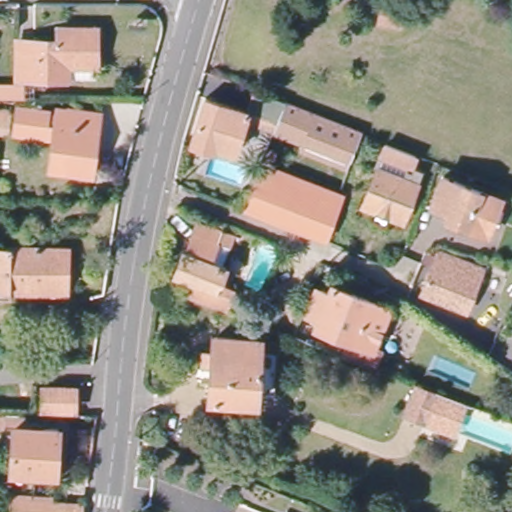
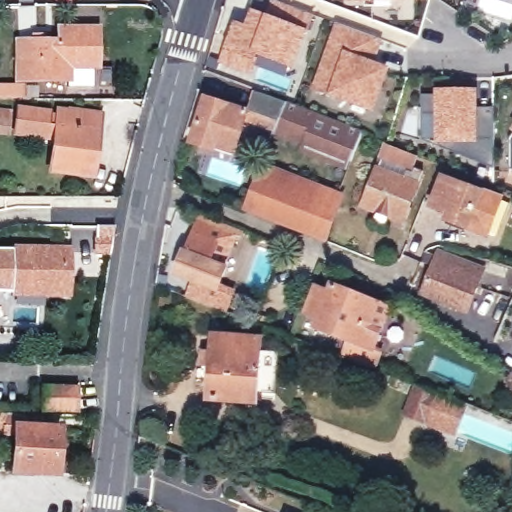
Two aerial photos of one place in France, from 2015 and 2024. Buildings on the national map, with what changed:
new [(409,2),(346,1),(346,0),(409,0),(409,2)]
unchanged [(380,22),(384,9),(385,4),(405,9),(404,16),(401,29),(380,22)]
new [(246,24),(251,6),(308,25),(292,67),(259,57),(251,77),(217,66),(226,47),(236,21),(246,24)]
new [(381,42),(372,60),(390,66),(375,110),(329,94),(310,89),(335,21),(381,42)]
unchanged [(96,63),(67,65),(66,78),(19,79),(20,42),(59,41),(59,26),(96,26),(96,63)]
unchanged [(306,138),(276,127),(278,122),(250,112),(257,87),(287,99),(364,129),(354,154),(351,153),(350,155),(347,163),(303,146),(306,138)]
new [(423,139),(422,94),(435,95),(434,89),(477,89),(478,105),(492,106),(493,166),(423,139)]
unchanged [(216,148),(192,139),(207,96),(250,112),(236,150),(219,143),(216,148)]
unchanged [(98,170),(54,170),(54,135),(13,135),(13,112),(46,112),(47,123),(54,122),(54,109),(68,109),(68,106),(98,106),(98,170)]
unchanged [(0,134),(0,124),(8,125),(6,135),(0,134)]
new [(509,170),(510,127),(512,125),(512,171),(509,170)]
unchanged [(413,166),(409,165),(409,168),(415,170),(417,166),(425,169),(406,219),(366,204),(379,167),(381,167),(385,156),(383,155),(388,142),(418,155),(413,166)]
unchanged [(246,209),(261,171),(328,197),(342,202),(328,241),(313,235),(246,209)]
unchanged [(485,234),(443,218),(447,210),(432,204),(443,177),(499,200),(485,234)]
unchanged [(195,288),(197,282),(174,273),(184,249),(186,250),(194,231),(199,222),(208,225),(222,231),(225,225),(237,230),(235,237),(225,265),(227,266),(218,285),(233,292),(226,312),(186,295),(190,286),(195,288)]
unchanged [(72,291),(16,292),(15,297),(0,297),(0,246),(72,246),(72,291)]
unchanged [(467,312),(423,295),(440,253),(484,270),(467,312)]
unchanged [(330,287),(333,280),(393,305),(378,345),(385,348),(380,360),(349,347),(354,336),(317,321),(319,313),(317,312),(311,309),(309,303),(316,285),(320,282),(327,286),(330,287)]
unchanged [(256,321),(259,313),(273,320),(271,328),(256,321)]
unchanged [(220,352),(225,335),(268,350),(250,407),(207,395),(213,376),(199,372),(204,357),(207,347),(220,352)]
unchanged [(447,421),(450,411),(430,403),(424,419),(402,410),(414,380),(456,397),(467,401),(458,425),(447,421)]
unchanged [(78,414),(47,413),(48,391),(79,393),(78,414)]
unchanged [(45,434),(14,432),(12,436),(0,436),(0,418),(41,420),(45,420),(45,434)]
unchanged [(57,434),(56,480),(12,480),(12,436),(14,432),(45,434),(57,434)]
unchanged [(155,456),(140,450),(142,436),(159,443),(155,456)]
demolished [(58,501),(84,502),(84,512),(13,512),(14,493),(56,496),(58,501)]

